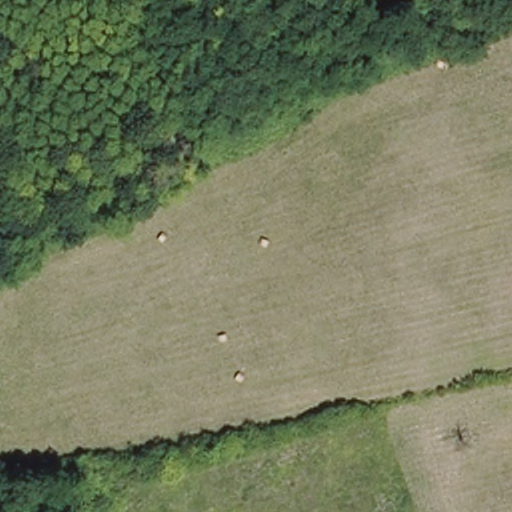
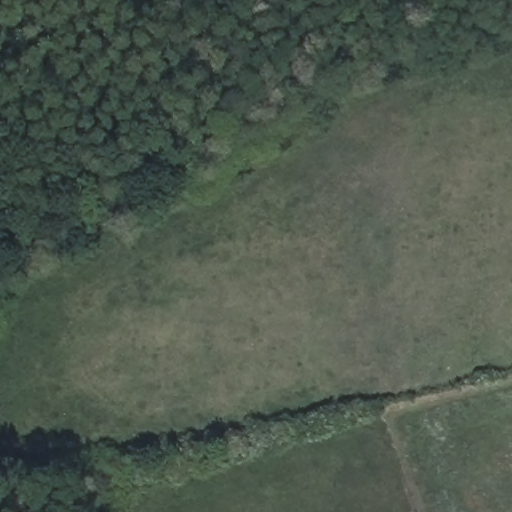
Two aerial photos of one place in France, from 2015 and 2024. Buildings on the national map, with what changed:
[]

